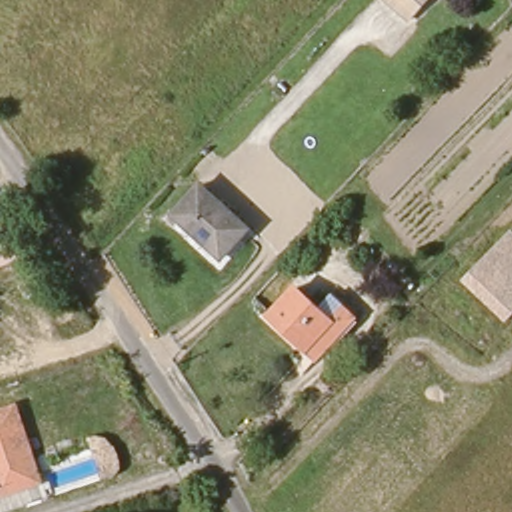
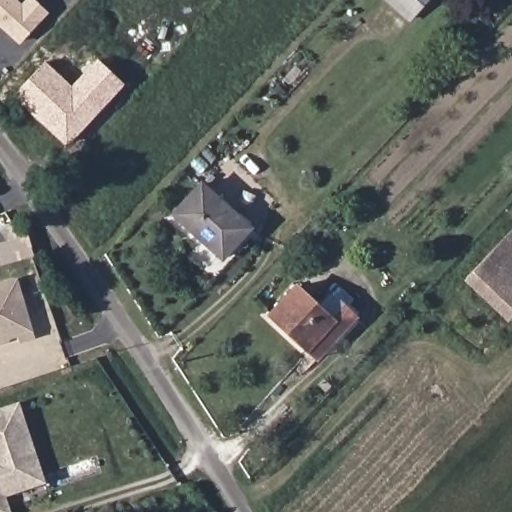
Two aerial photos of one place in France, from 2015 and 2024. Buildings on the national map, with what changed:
new [(24,0),(36,0),(49,13),(20,45),(0,27),(0,0),(18,0),(21,3),(24,0)]
unchanged [(393,0),(426,0),(411,16),(393,0)]
new [(125,84),(67,145),(13,97),(45,60),(72,85),(97,57),(125,84)]
unchanged [(225,257),(180,214),(206,185),(251,229),(225,257)]
unchanged [(512,230),(512,316),(507,321),(464,280),(512,230)]
new [(0,344),(0,282),(18,277),(35,334),(0,344)]
unchanged [(316,361),(269,317),(293,290),(318,310),(328,299),(353,321),(316,361)]
unchanged [(0,497),(0,413),(14,409),(31,458),(40,484),(45,500),(10,512),(0,512),(0,497)]

